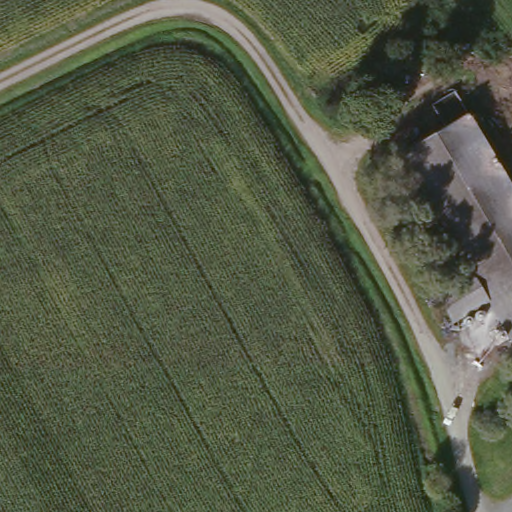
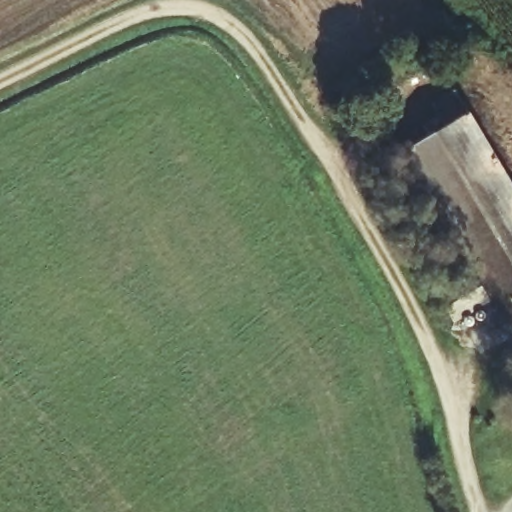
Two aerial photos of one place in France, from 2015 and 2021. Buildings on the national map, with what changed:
unchanged [(495,306),(460,327),(444,302),(478,282),(401,159),(469,116),(512,184),(512,333),(495,306)]

